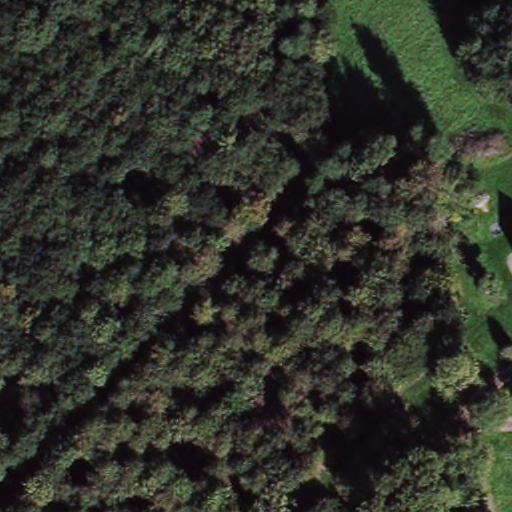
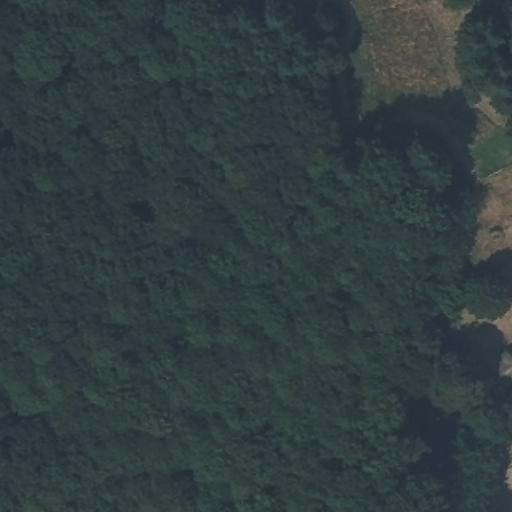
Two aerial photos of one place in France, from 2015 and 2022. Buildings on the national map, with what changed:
[]

